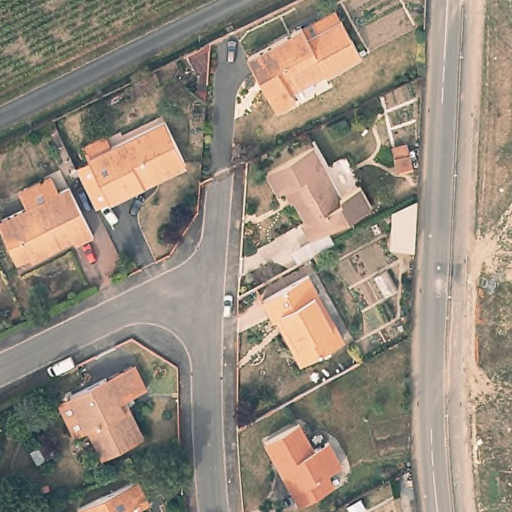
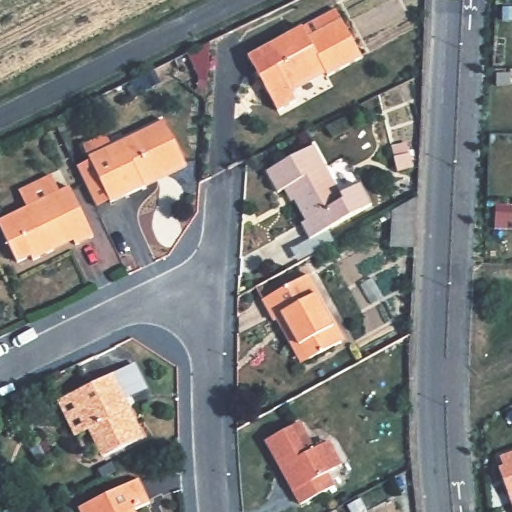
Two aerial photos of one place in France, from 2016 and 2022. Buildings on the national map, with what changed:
unchanged [(244,58),(299,26),(303,32),(337,14),(359,52),(325,71),(323,67),(288,87),(295,100),(275,112),(261,87),(256,77),(244,58)]
unchanged [(163,120),(182,159),(142,180),(144,185),(110,203),(88,159),(163,120)]
unchanged [(308,238),(299,221),(305,219),(288,185),(278,190),(267,169),(315,144),(340,194),(360,184),(371,204),(326,229),(333,242),(298,261),(290,247),(308,238)]
unchanged [(406,157),(409,172),(395,176),(392,161),(406,157)]
unchanged [(32,252),(19,260),(0,222),(0,219),(70,184),(94,232),(76,241),(75,237),(54,247),(34,257),(32,252)]
unchanged [(413,250),(392,249),(393,214),(414,202),(413,250)]
unchanged [(277,323),(273,325),(262,305),(309,280),(319,300),(317,302),(339,344),(304,362),(300,365),(277,323)]
unchanged [(136,438),(103,455),(89,427),(86,428),(73,435),(56,399),(69,392),(120,367),(121,370),(132,365),(144,388),(123,400),(140,436),(136,438)]
unchanged [(268,435),(304,420),(314,447),(329,441),(339,466),(324,472),(331,487),(295,502),(289,487),(279,464),(268,435)]
new [(498,456),(512,452),(512,512),(497,468),(502,465),(498,456)]
unchanged [(138,478),(149,502),(133,510),(134,512),(79,512),(78,508),(138,478)]

